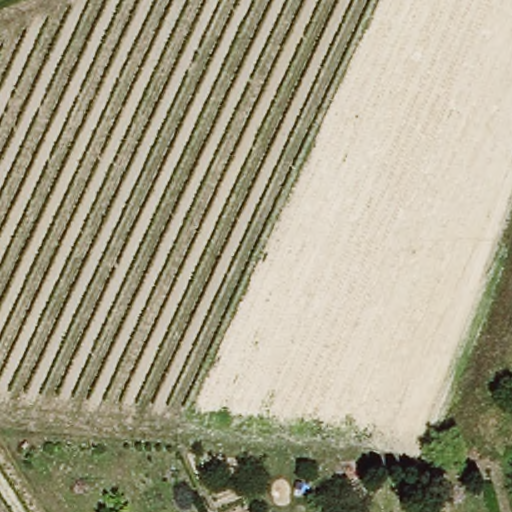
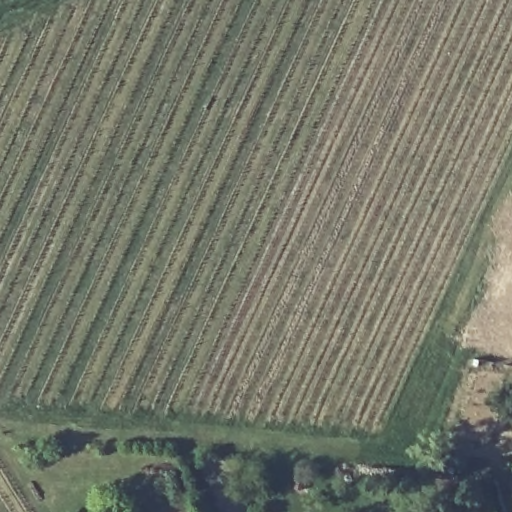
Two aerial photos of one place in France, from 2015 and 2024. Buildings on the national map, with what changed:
[]

